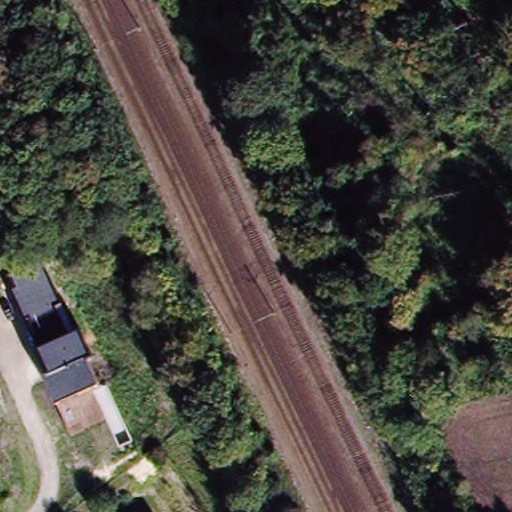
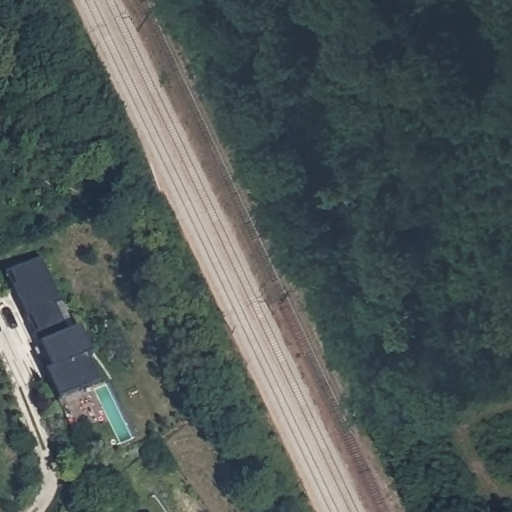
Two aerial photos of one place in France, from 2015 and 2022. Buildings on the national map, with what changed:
unchanged [(40,256),(75,332),(80,330),(91,354),(87,357),(99,383),(91,388),(103,420),(71,435),(57,404),(44,377),(50,373),(40,347),(13,289),(16,287),(8,270),(40,256)]

